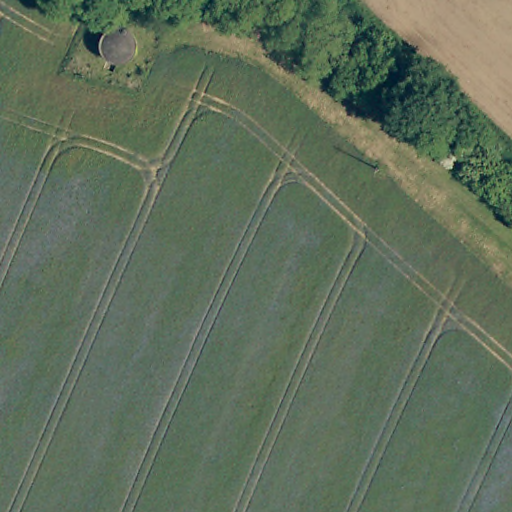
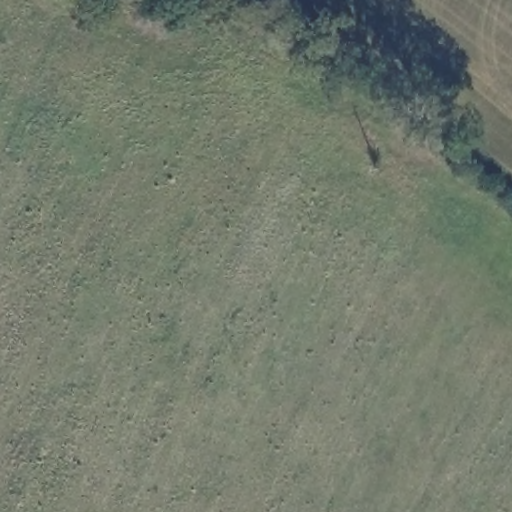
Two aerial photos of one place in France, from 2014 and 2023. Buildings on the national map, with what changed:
[]

